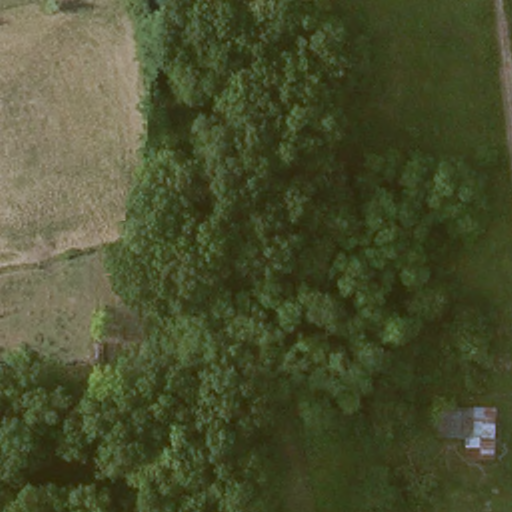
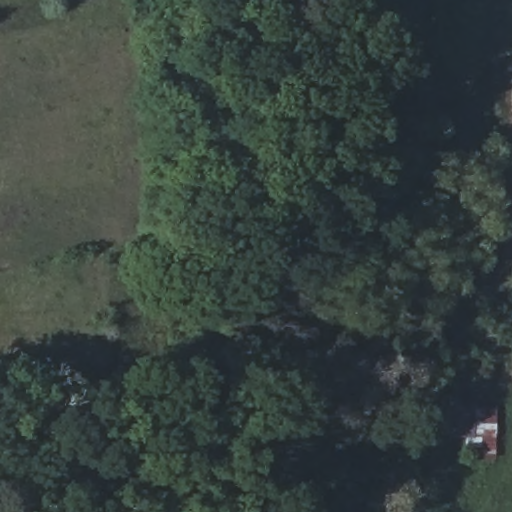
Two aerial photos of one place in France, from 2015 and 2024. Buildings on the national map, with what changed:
unchanged [(470,457),(468,439),(439,437),(441,405),(468,406),(495,407),(495,458),(470,457)]

